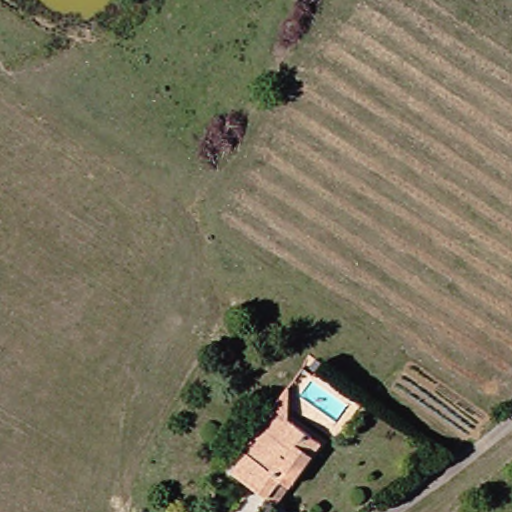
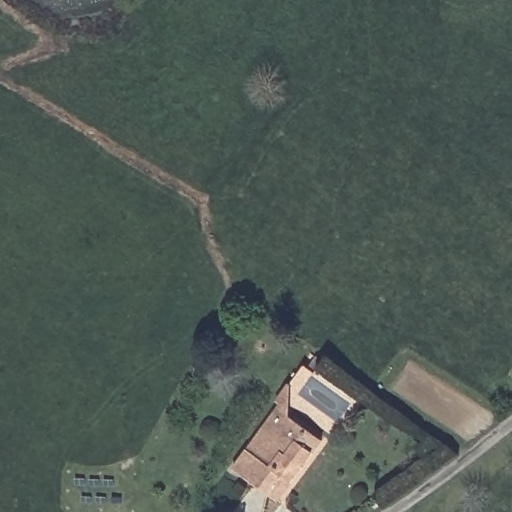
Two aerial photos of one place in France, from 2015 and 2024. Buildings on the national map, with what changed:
unchanged [(273,496),(238,471),(252,452),(286,405),(282,403),(295,384),(293,418),(326,442),(311,462),(307,468),(295,485),(282,503),(273,496)]

